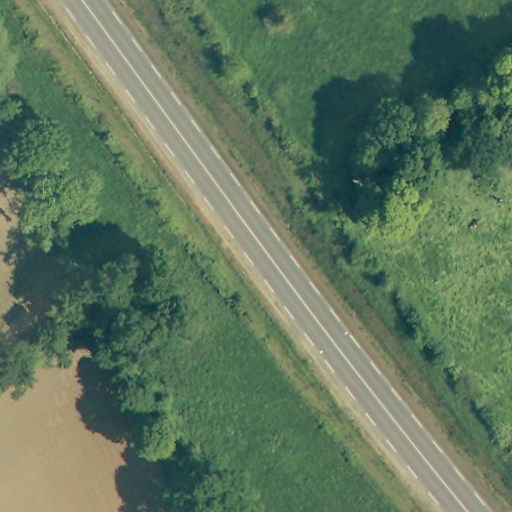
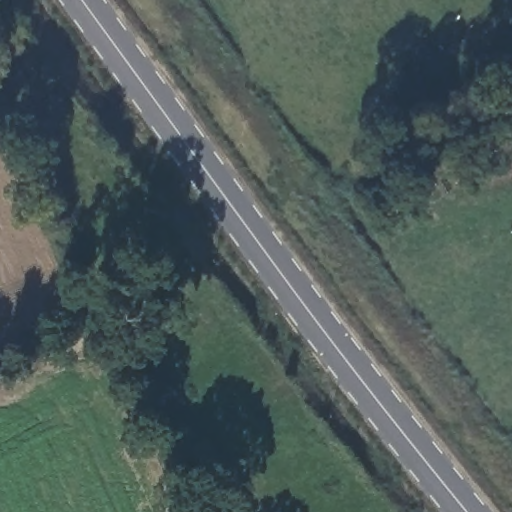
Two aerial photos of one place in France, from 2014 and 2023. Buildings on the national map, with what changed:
[]

